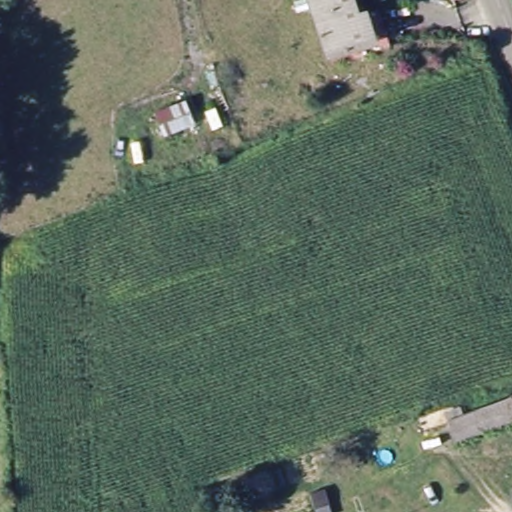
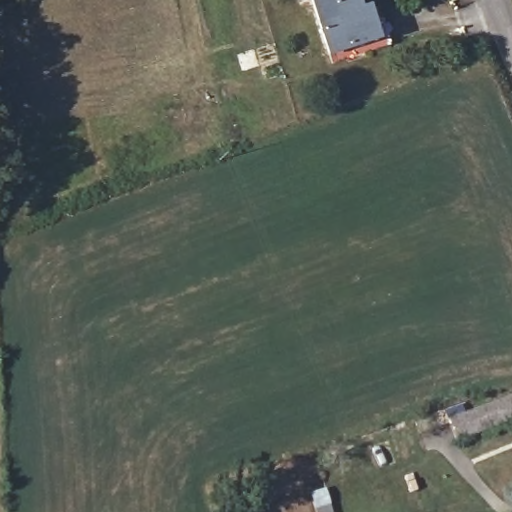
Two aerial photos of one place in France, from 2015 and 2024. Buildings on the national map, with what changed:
unchanged [(378,4),(390,35),(328,58),(306,0),(350,0),(355,12),(378,4)]
unchanged [(512,395),(512,420),(462,437),(457,438),(451,415),(454,414),(512,395)]

